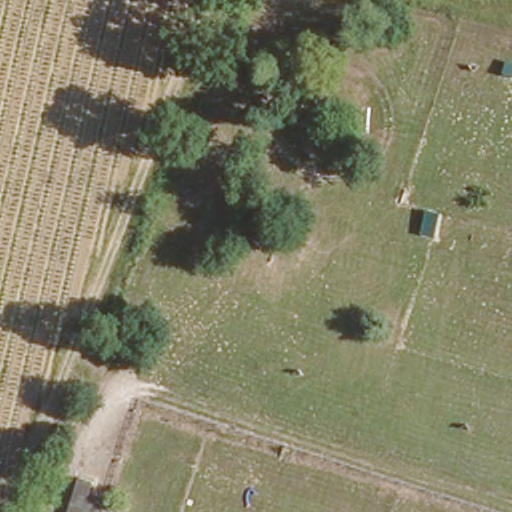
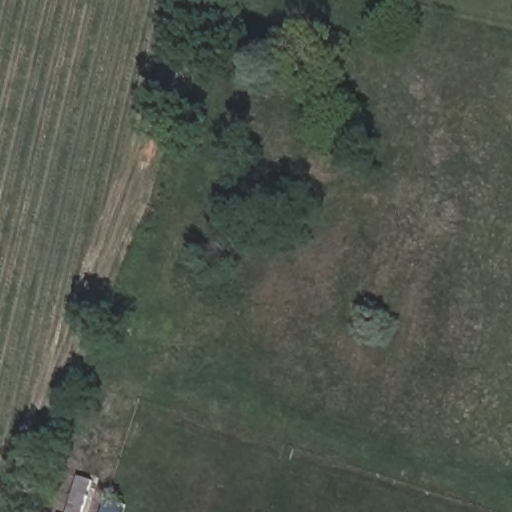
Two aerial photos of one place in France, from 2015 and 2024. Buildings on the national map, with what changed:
unchanged [(83,488),(96,492),(87,512),(72,512),(83,488)]
unchanged [(111,500),(131,507),(129,512),(107,512),(111,500)]

